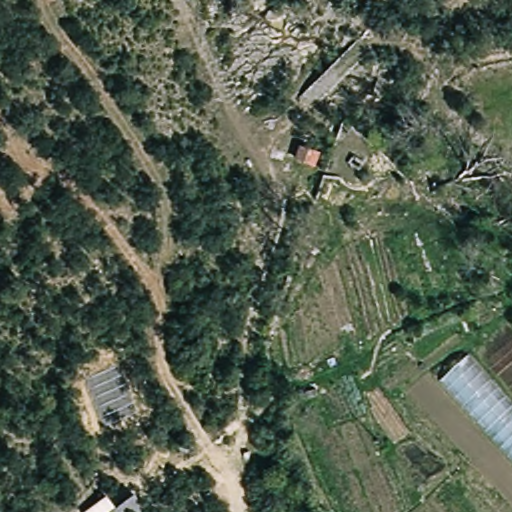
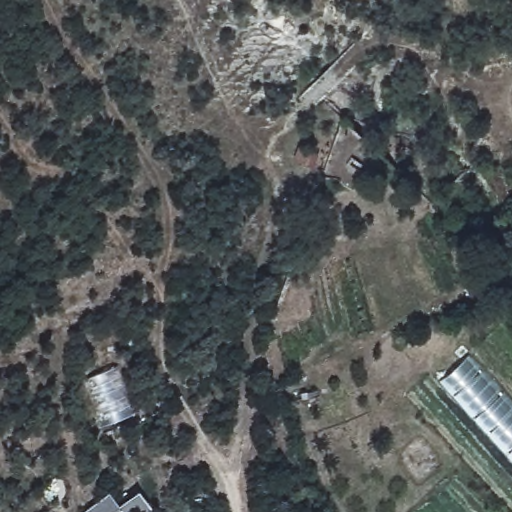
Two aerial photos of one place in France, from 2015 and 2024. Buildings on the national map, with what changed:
unchanged [(310,164),(296,157),(301,145),(315,151),(310,164)]
unchanged [(466,351),(512,402),(512,461),(436,380),(466,351)]
unchanged [(114,508),(133,494),(146,510),(143,512),(86,512),(105,496),(114,508)]

